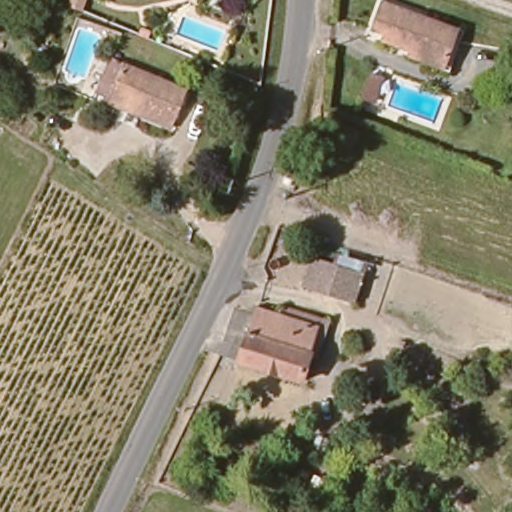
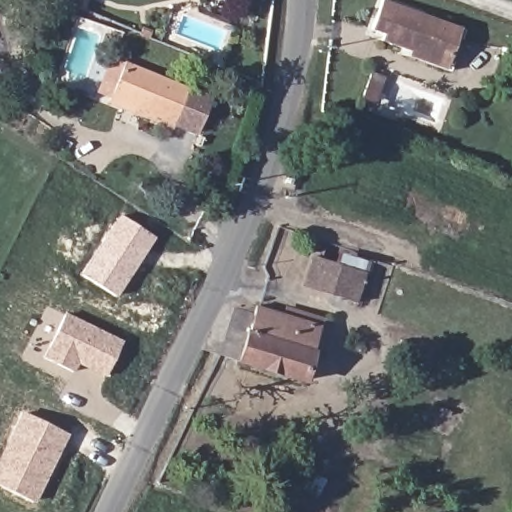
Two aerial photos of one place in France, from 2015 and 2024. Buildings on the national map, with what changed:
demolished [(34,0),(44,0),(54,5),(45,27),(25,19),(34,0)]
unchanged [(90,5),(79,0),(80,0),(93,0),(90,5)]
unchanged [(387,35),(373,30),(384,0),(464,29),(451,67),(384,42),(387,35)]
unchanged [(109,54),(186,86),(171,122),(95,90),(109,54)]
unchanged [(401,87),(393,110),(380,105),(389,82),(401,87)]
new [(154,238),(116,297),(80,274),(119,215),(154,238)]
unchanged [(361,300),(307,282),(316,252),(342,260),(370,269),(362,296),(361,300)]
unchanged [(253,310),(289,320),(292,311),(330,322),(319,364),(306,360),(300,381),(237,361),(253,310)]
new [(64,313),(123,341),(104,376),(77,363),(73,372),(42,357),(64,313)]
unchanged [(422,336),(422,342),(415,341),(415,335),(422,336)]
new [(0,487),(0,453),(20,412),(67,434),(33,503),(0,487)]

